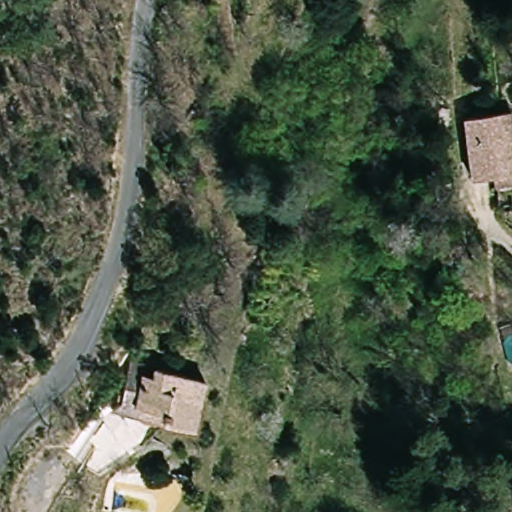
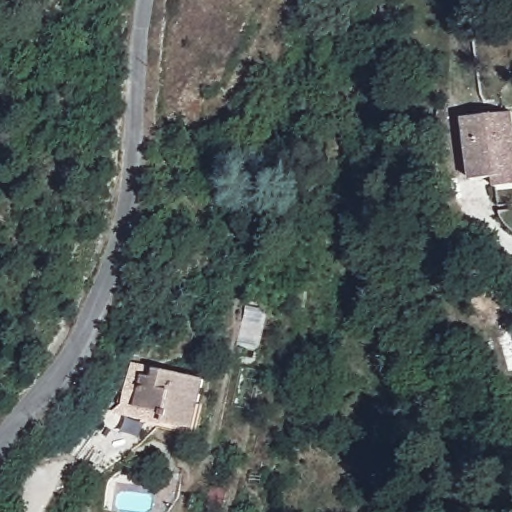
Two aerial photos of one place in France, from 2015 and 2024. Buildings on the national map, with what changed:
unchanged [(464,117),(512,110),(512,178),(497,180),(495,175),(472,179),(464,117)]
unchanged [(198,427),(181,421),(134,406),(138,398),(149,370),(173,378),(176,369),(223,385),(214,407),(205,429),(198,427)]

